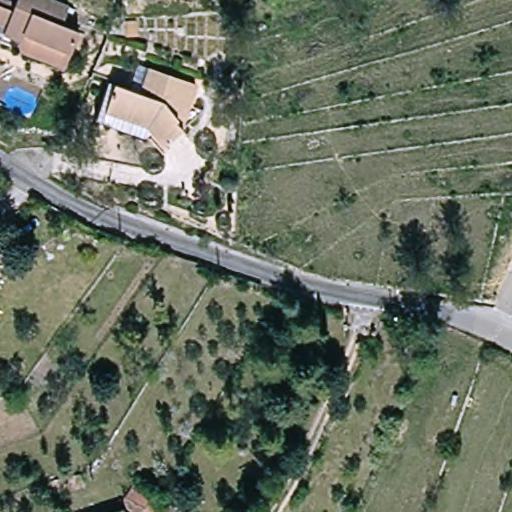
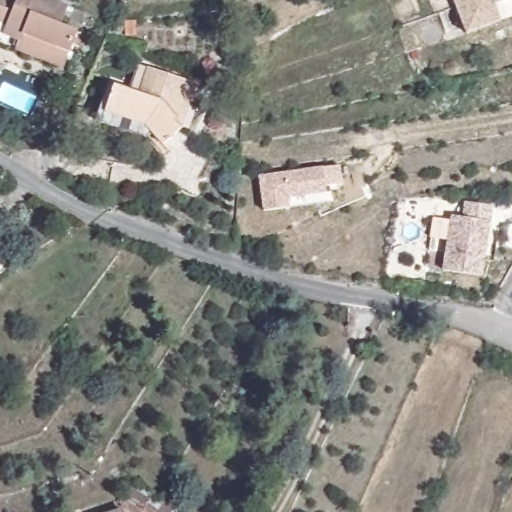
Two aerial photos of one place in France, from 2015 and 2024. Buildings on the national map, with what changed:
unchanged [(66,20),(85,31),(71,56),(20,32),(16,41),(1,34),(6,23),(0,20),(0,5),(12,11),(17,0),(59,0),(74,6),(66,20)]
new [(448,0),(506,0),(455,19),(448,0)]
new [(490,6),(496,23),(462,36),(455,19),(490,6)]
unchanged [(71,56),(61,72),(12,49),(16,41),(20,32),(71,56)]
unchanged [(157,67),(203,86),(184,132),(165,146),(150,132),(112,116),(101,111),(116,77),(128,82),(148,90),(157,67)]
new [(339,165),(342,183),(326,186),(327,191),(288,197),(289,207),(265,211),(260,177),(339,165)]
new [(448,230),(458,231),(461,215),(488,220),(477,290),(435,284),(448,230)]
unchanged [(3,252),(0,255),(0,249),(3,252)]
unchanged [(120,510),(121,512),(116,512),(120,510)]

